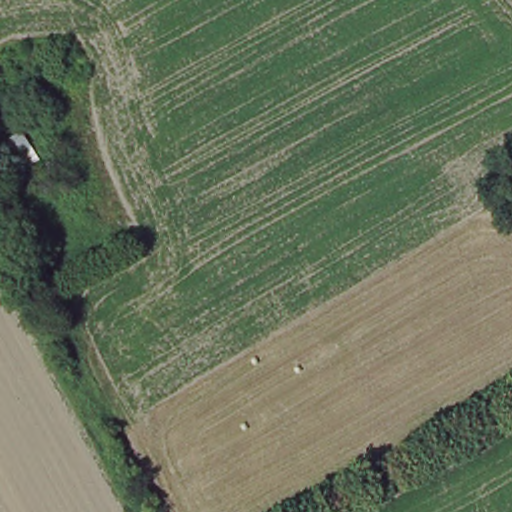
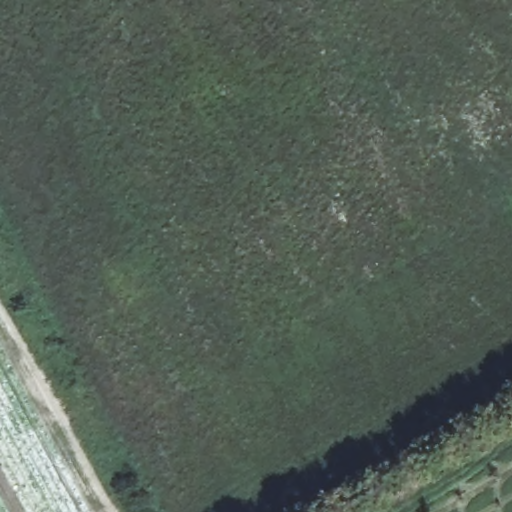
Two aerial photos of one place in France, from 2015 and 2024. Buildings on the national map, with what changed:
unchanged [(0,174),(0,151),(37,128),(51,153),(4,181),(0,174)]

